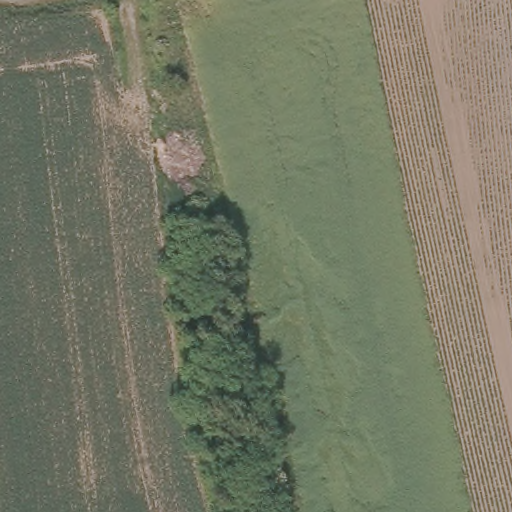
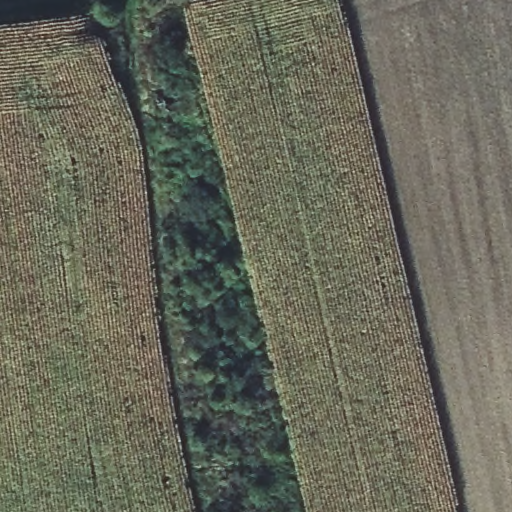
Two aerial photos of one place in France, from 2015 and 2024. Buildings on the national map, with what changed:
[]

